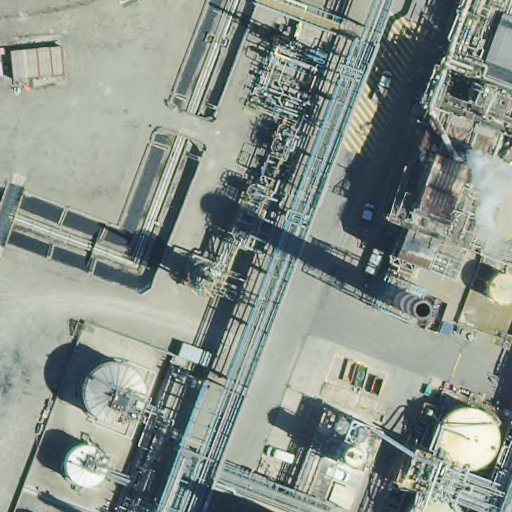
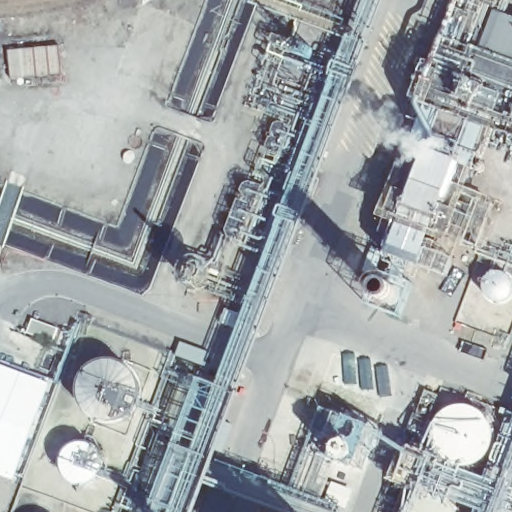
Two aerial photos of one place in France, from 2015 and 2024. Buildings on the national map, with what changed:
unchanged [(512,18),(512,143),(492,136),(470,186),(499,193),(481,244),(465,240),(449,277),(375,251),(459,0),(512,0),(512,7),(509,16),(512,18)]
new [(34,435),(14,480),(0,475),(0,362),(54,381),(34,435)]

